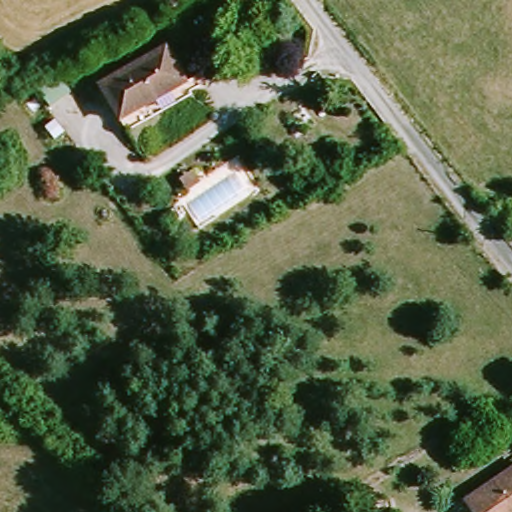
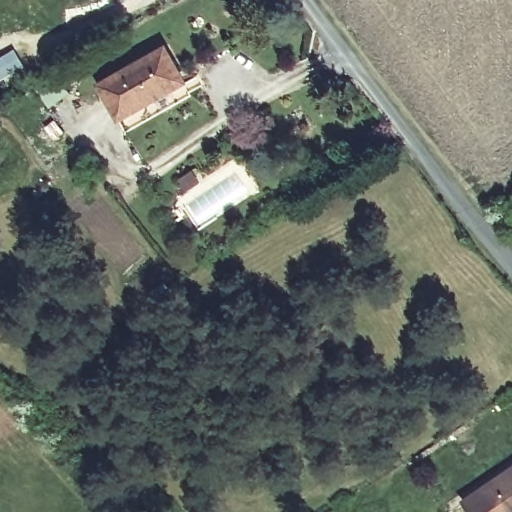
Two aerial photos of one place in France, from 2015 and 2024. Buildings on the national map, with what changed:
unchanged [(183,83),(119,122),(96,85),(161,46),(183,83)]
unchanged [(462,496),(512,465),(512,512),(472,512),(462,496)]

